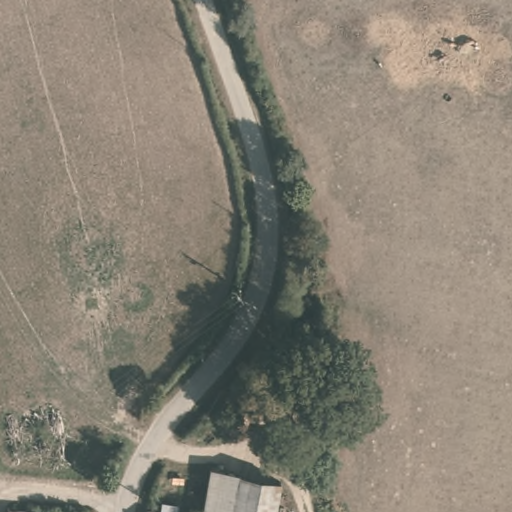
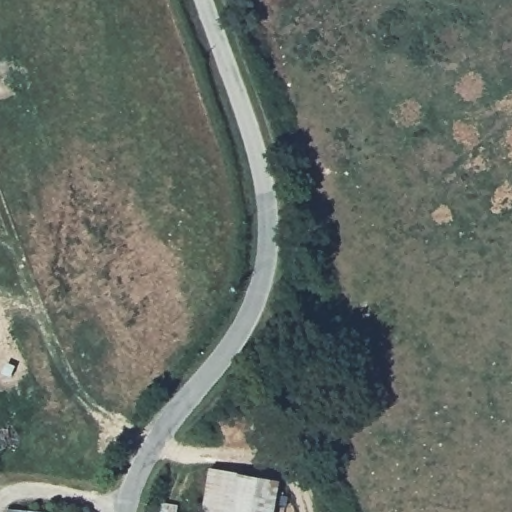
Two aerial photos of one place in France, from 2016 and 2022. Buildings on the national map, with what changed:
unchanged [(281,480),(276,512),(204,512),(212,468),(281,480)]
unchanged [(160,510),(162,501),(179,504),(178,512),(147,512),(148,508),(160,510)]
unchanged [(46,512),(10,512),(10,509),(46,512)]

